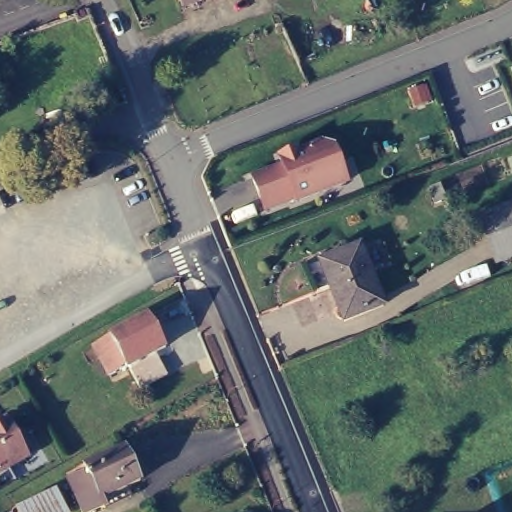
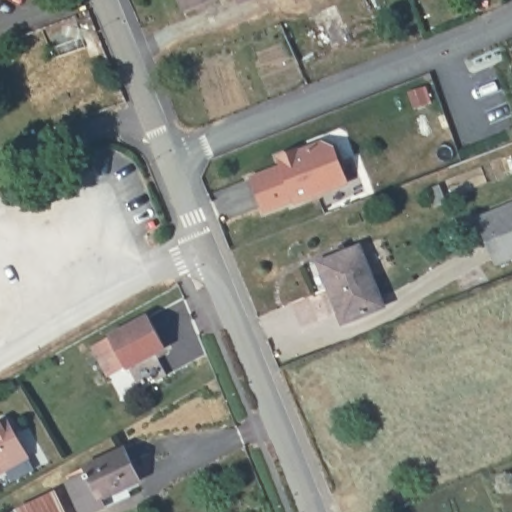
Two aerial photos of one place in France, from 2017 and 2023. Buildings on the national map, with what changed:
unchanged [(175,0),(206,0),(179,10),(175,0)]
unchanged [(239,0),(255,0),(242,6),(239,0)]
unchanged [(279,167),(275,159),(329,139),(347,184),(296,204),(295,200),(261,211),(249,177),(279,167)]
unchanged [(512,203),(512,257),(495,264),(476,218),(512,203)]
unchanged [(344,324),(327,287),(316,293),(307,273),(317,269),(315,265),(362,244),(388,306),(344,324)]
unchanged [(148,315),(166,346),(114,374),(96,343),(148,315)]
unchanged [(0,423),(9,419),(32,461),(0,477),(0,423)]
unchanged [(108,512),(105,512),(103,509),(97,512),(80,512),(65,482),(68,480),(66,477),(122,451),(141,485),(126,492),(131,501),(108,512)]
unchanged [(17,510),(48,497),(54,494),(63,512),(18,512),(17,510)]

